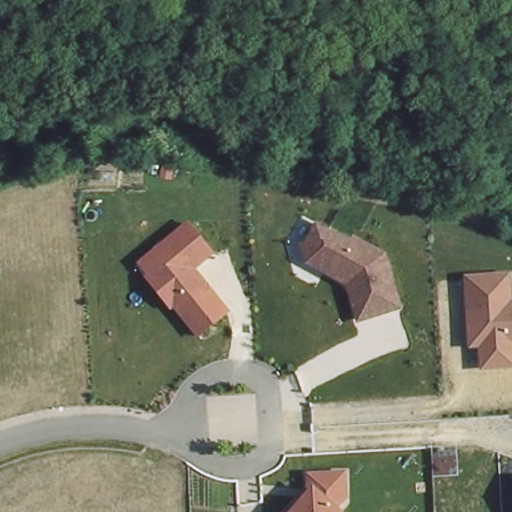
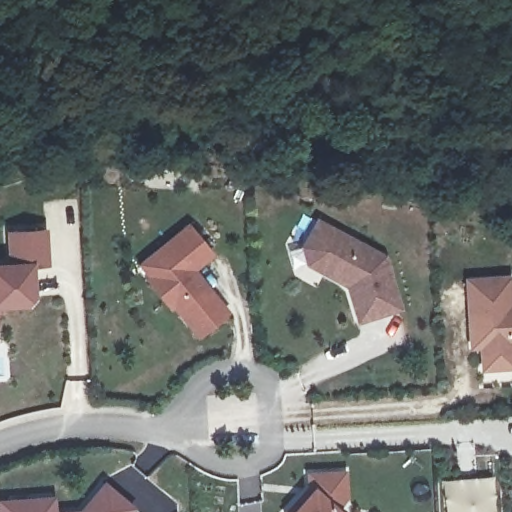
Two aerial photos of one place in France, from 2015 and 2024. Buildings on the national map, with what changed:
unchanged [(389,256),(404,311),(360,323),(349,288),(307,266),(302,251),(320,218),(389,256)]
unchanged [(198,270),(232,313),(199,339),(139,263),(191,222),(215,255),(198,270)]
new [(16,237),(52,234),(56,299),(50,306),(7,309),(8,315),(0,315),(0,270),(19,269),(16,237)]
unchanged [(482,372),(481,349),(471,350),(465,278),(512,276),(512,371),(482,372)]
new [(0,315),(1,327),(3,344),(0,344),(0,315)]
unchanged [(350,499),(340,508),(343,511),(342,512),(286,512),(308,487),(307,470),(348,469),(350,499)]
new [(495,474),(497,512),(443,512),(440,479),(495,474)]
new [(115,485),(144,509),(141,512),(92,512),(115,485)]
new [(64,499),(64,512),(11,512),(10,504),(25,502),(57,499),(64,499)]

